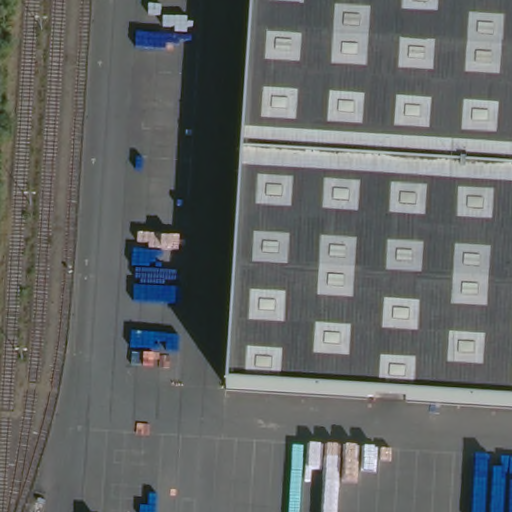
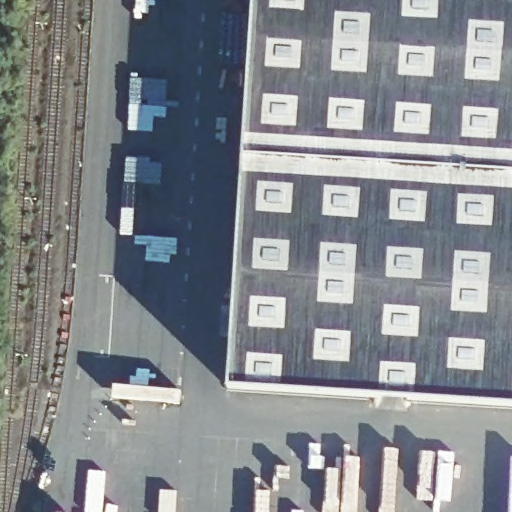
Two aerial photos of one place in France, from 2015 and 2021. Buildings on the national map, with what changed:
unchanged [(512,0),(512,297),(478,302),(454,308),(432,314),(412,321),(388,330),(372,339),(368,340),(358,347),(349,353),(342,360),(338,364),(330,369),(316,376),(312,376),(296,373),(275,368),(265,366),(255,362),(237,354),(259,0),(512,0)]
unchanged [(351,399),(324,397),(272,394),(236,392),(236,391),(237,358),(265,366),(275,368),(298,375),(318,381),(345,376),(372,339),(453,322),(503,311),(512,309),(512,408),(351,399)]

